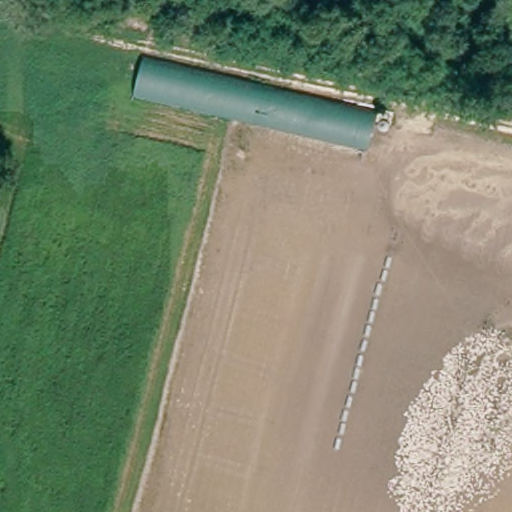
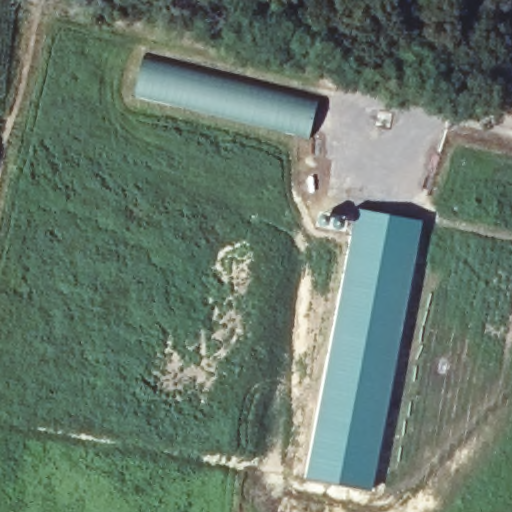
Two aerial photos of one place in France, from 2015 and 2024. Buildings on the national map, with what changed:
unchanged [(133,91),(143,52),(320,95),(310,136),(133,91)]
new [(305,478),(355,209),(422,220),(371,491),(305,478)]

